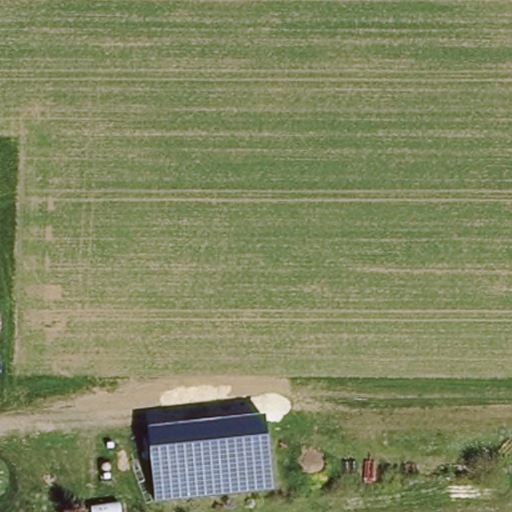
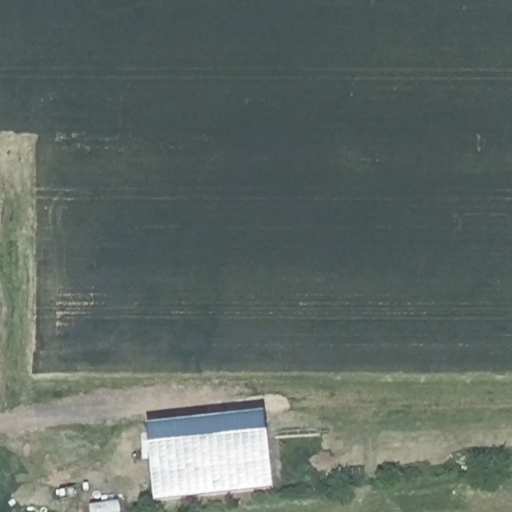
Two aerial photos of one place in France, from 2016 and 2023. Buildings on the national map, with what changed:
unchanged [(272,490),(154,503),(147,428),(265,416),(272,490)]

